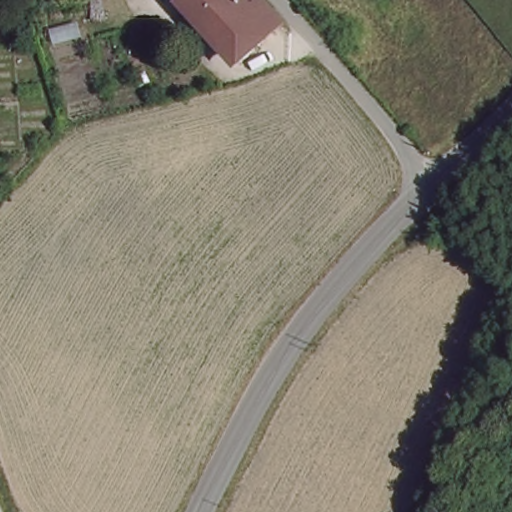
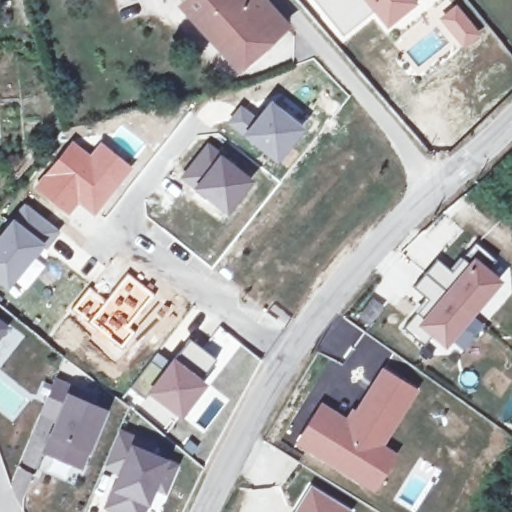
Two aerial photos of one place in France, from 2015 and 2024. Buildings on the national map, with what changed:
unchanged [(251,2),(279,32),(235,72),(177,9),(187,0),(250,0),(251,2)]
new [(373,14),(342,38),(310,0),(362,0),(373,14)]
new [(384,27),(373,14),(362,0),(418,0),(384,27)]
new [(456,4),(481,33),(463,47),(439,19),(456,4)]
unchanged [(143,60),(118,74),(110,60),(135,45),(143,60)]
new [(241,102),(256,114),(269,97),(304,125),(276,161),(226,121),(241,102)]
new [(71,139),(89,152),(100,140),(131,165),(93,216),(78,204),(68,215),(33,187),(71,139)]
new [(207,141),(253,180),(226,215),(178,178),(207,141)]
new [(60,230),(8,290),(0,283),(0,231),(23,200),(60,230)]
new [(499,260),(489,271),(499,281),(443,341),(432,330),(422,341),(402,323),(428,295),(414,282),(439,255),(454,269),(479,241),(499,260)]
new [(127,271),(156,295),(141,315),(146,319),(121,350),(88,321),(127,271)]
new [(314,395),(343,413),(339,410),(345,400),(349,402),(375,360),(406,378),(396,395),(394,394),(376,424),(378,425),(352,468),(292,432),(308,406),(314,395)]
new [(83,403),(103,411),(80,468),(43,452),(58,415),(55,420),(39,413),(41,408),(53,381),(86,395),(83,403)]
new [(147,455),(173,466),(163,492),(151,487),(141,512),(115,512),(105,508),(119,474),(102,467),(116,433),(150,447),(147,455)]
new [(372,435),(387,443),(367,477),(352,468),(372,435)]
new [(344,500),(338,512),(286,512),(306,478),(344,500)]

